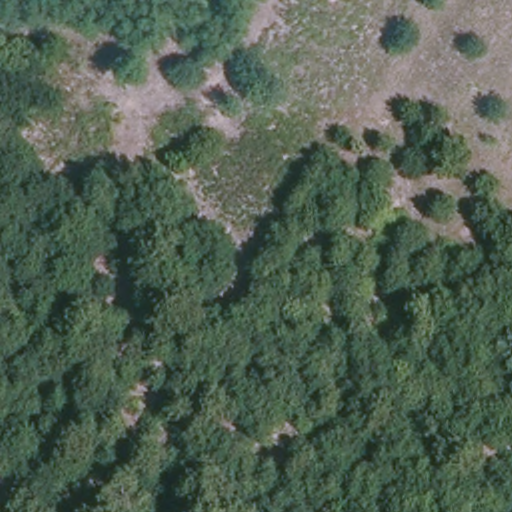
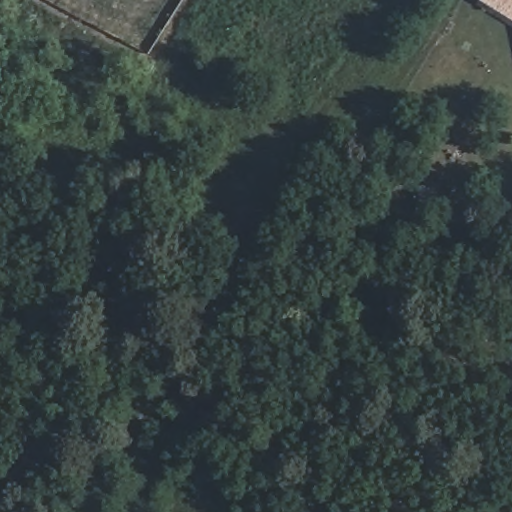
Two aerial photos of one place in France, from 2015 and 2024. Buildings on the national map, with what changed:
new [(482,0),(512,0),(512,19),(482,0)]

